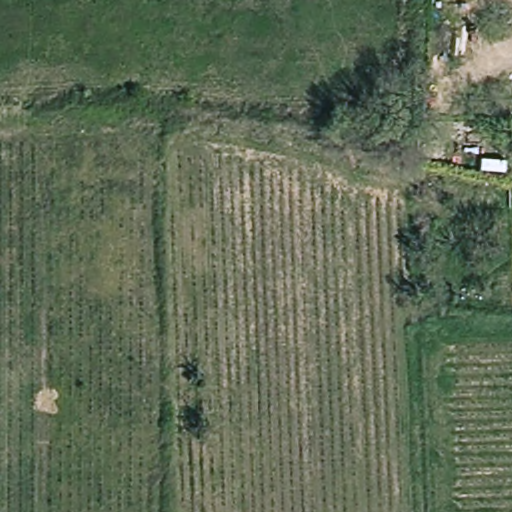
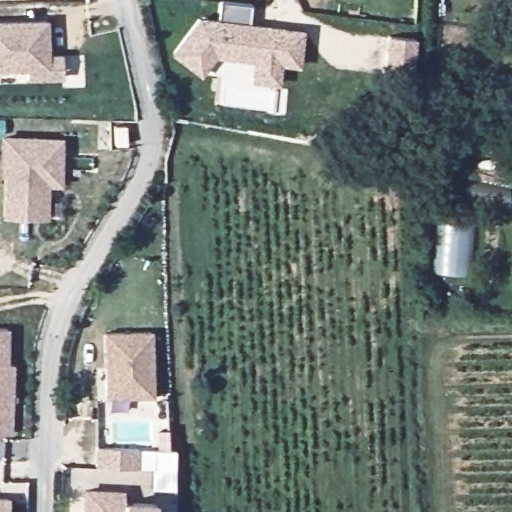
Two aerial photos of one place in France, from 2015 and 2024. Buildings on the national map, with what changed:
new [(218,19),(220,3),(251,6),(248,23),(305,30),(301,67),(282,64),(280,85),(250,81),(253,62),(215,58),(200,76),(170,53),(197,18),(218,19)]
new [(55,23),(53,57),(68,58),(67,79),(31,79),(30,78),(30,68),(5,68),(0,68),(0,21),(55,23)]
new [(415,39),(411,72),(384,70),(387,35),(415,39)]
new [(1,138),(62,139),(61,186),(47,185),(46,217),(1,216),(1,138)]
new [(7,328),(6,364),(12,365),(10,433),(0,432),(0,328),(7,328)]
new [(154,335),(155,400),(108,401),(108,372),(110,372),(110,356),(107,356),(107,337),(154,335)]
new [(102,451),(143,453),(142,473),(101,471),(102,451)]
new [(128,497),(127,507),(158,509),(158,512),(89,512),(90,496),(128,497)]
unchanged [(12,502),(11,512),(0,512),(0,501),(12,502)]

